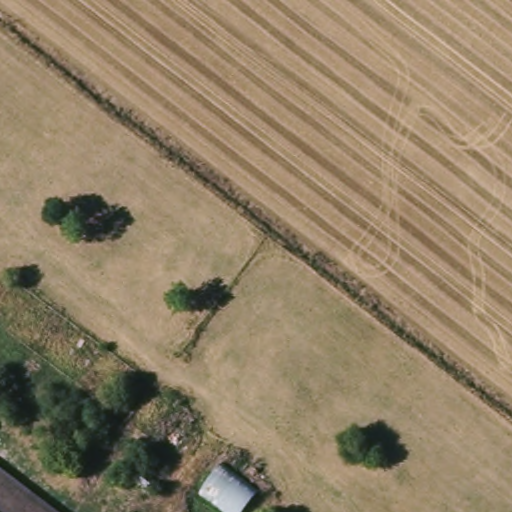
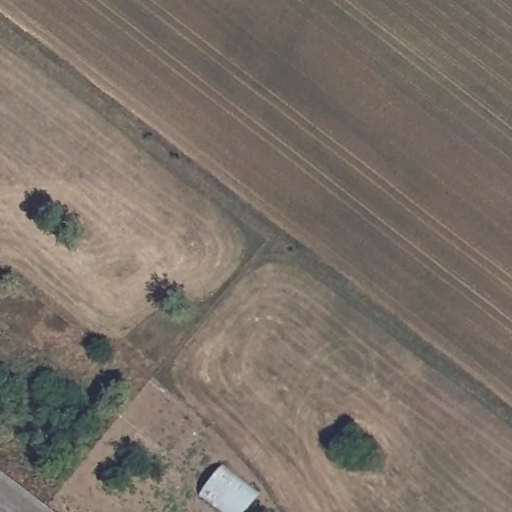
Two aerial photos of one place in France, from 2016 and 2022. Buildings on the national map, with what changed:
unchanged [(251,512),(214,512),(193,497),(218,461),(262,493),(251,512)]
unchanged [(50,512),(0,512),(0,473),(50,512)]

